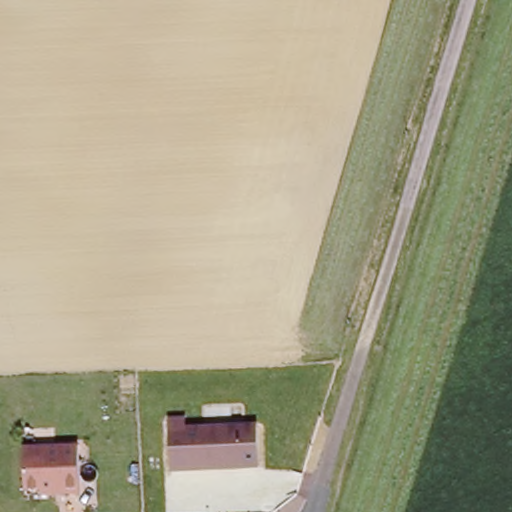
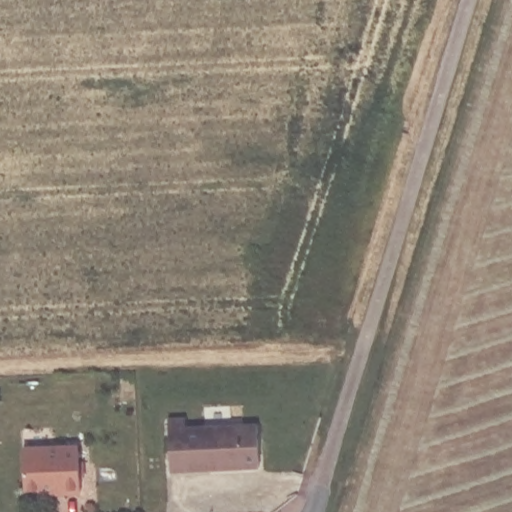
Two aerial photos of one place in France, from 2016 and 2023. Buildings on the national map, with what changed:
unchanged [(183,420),(184,430),(255,426),(257,469),(240,469),(240,467),(216,468),(216,471),(168,473),(166,421),(183,420)]
unchanged [(38,488),(22,489),(20,446),(75,443),(77,491),(62,492),(38,493),(38,488)]

